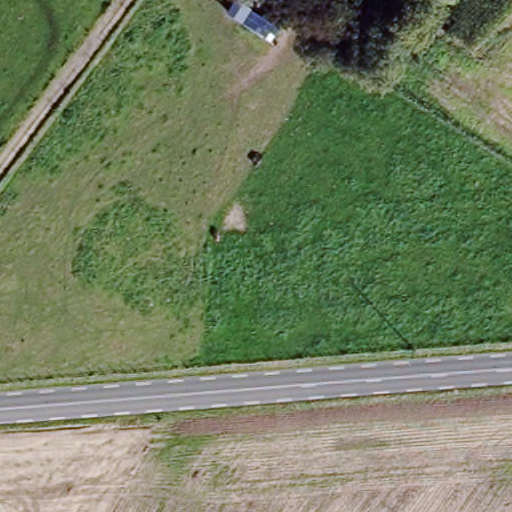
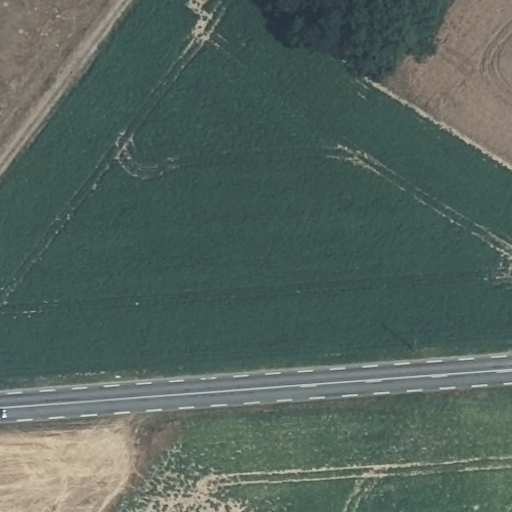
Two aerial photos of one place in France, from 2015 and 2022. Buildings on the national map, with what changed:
unchanged [(368,8),(356,0),(375,0),(368,8)]

